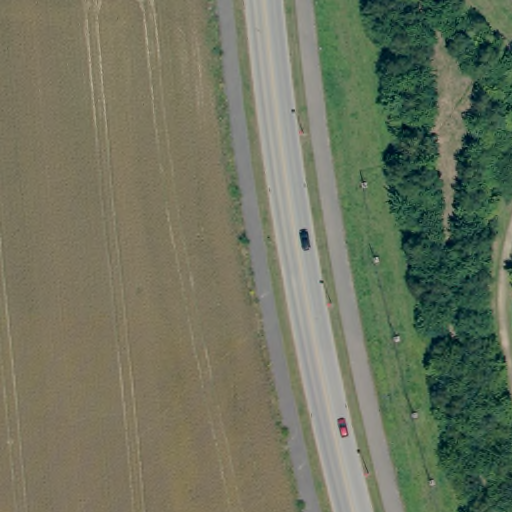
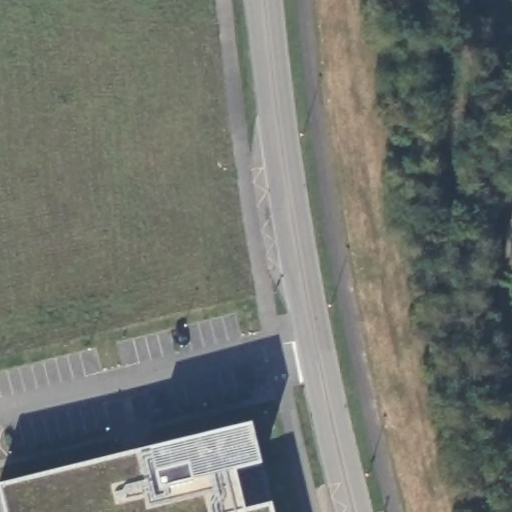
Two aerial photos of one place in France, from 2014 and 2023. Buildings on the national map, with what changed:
new [(249,422),(259,462),(235,467),(246,508),(272,502),(274,512),(6,512),(1,484),(249,422)]

